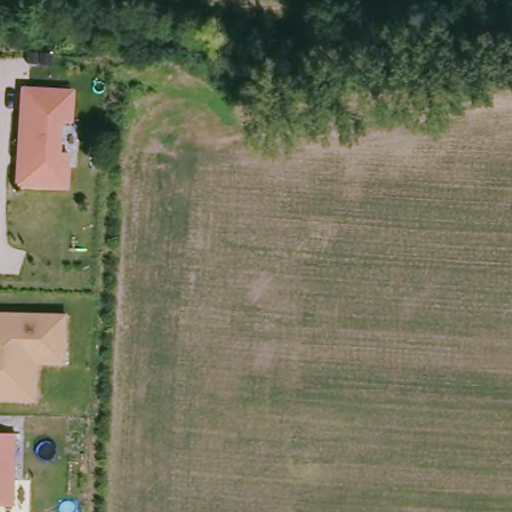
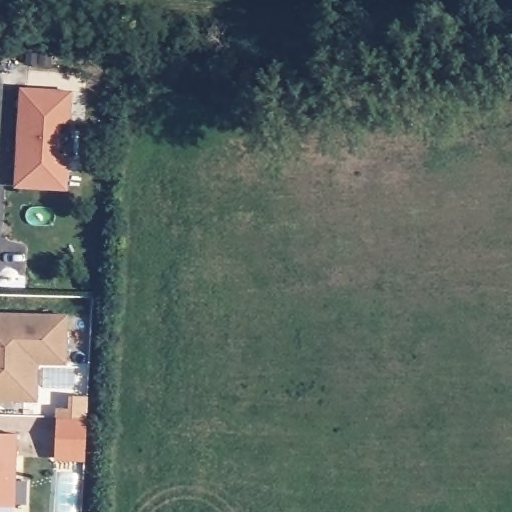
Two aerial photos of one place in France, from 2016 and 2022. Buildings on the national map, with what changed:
unchanged [(69,189),(18,187),(23,87),(75,90),(73,120),(63,120),(61,153),(73,155),(69,189)]
unchanged [(69,364),(41,364),(40,401),(0,400),(0,313),(71,315),(69,364)]
new [(57,419),(86,420),(84,461),(55,460),(57,419)]
unchanged [(21,430),(19,502),(0,502),(0,430),(21,430)]

